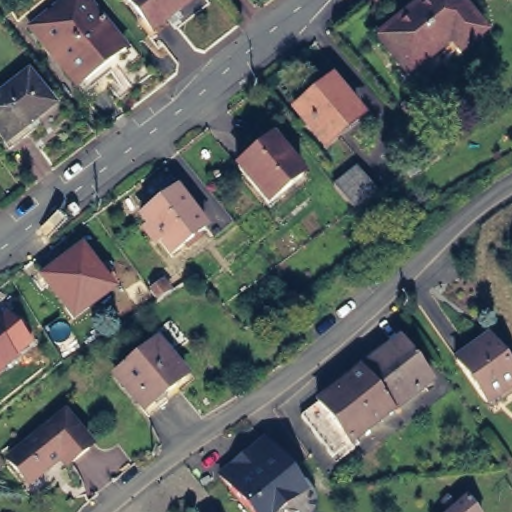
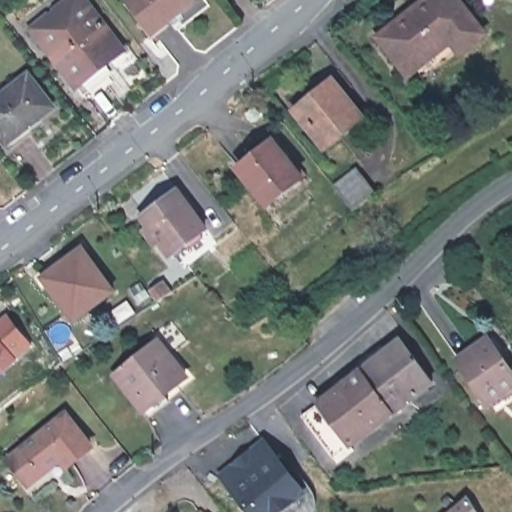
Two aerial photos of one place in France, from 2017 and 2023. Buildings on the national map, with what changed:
unchanged [(82,93),(27,22),(56,0),(85,0),(129,57),(82,93)]
unchanged [(128,0),(192,0),(150,31),(128,0)]
unchanged [(409,76),(377,39),(426,0),(456,0),(485,34),(460,54),(452,43),(409,76)]
unchanged [(54,106),(37,119),(42,126),(10,150),(0,136),(0,95),(30,73),(54,106)]
unchanged [(297,114),(330,88),(359,123),(325,149),(297,114)]
unchanged [(270,210),(239,172),(272,145),(302,183),(270,210)]
unchanged [(335,186),(357,169),(376,192),(355,211),(335,186)]
unchanged [(212,229),(177,255),(167,241),(162,245),(151,231),(156,227),(147,217),(182,190),(212,229)]
unchanged [(86,249),(118,291),(80,321),(47,278),(86,249)]
unchanged [(150,291),(164,281),(172,293),(159,302),(150,291)]
unchanged [(16,359),(17,361),(0,375),(0,318),(5,313),(32,346),(16,359)]
unchanged [(168,392),(172,398),(152,414),(120,373),(155,343),(161,338),(174,355),(189,373),(168,392)]
unchanged [(512,372),(512,388),(489,404),(458,360),(488,339),(512,372)]
unchanged [(339,460),(305,418),(363,372),(359,366),(385,345),(390,350),(404,340),(437,381),(339,460)]
unchanged [(75,459),(69,451),(31,481),(12,455),(68,412),(93,444),(75,459)]
unchanged [(304,488),(276,512),(251,512),(219,473),(263,438),(304,488)]
unchanged [(486,512),(459,512),(475,497),(486,512)]

